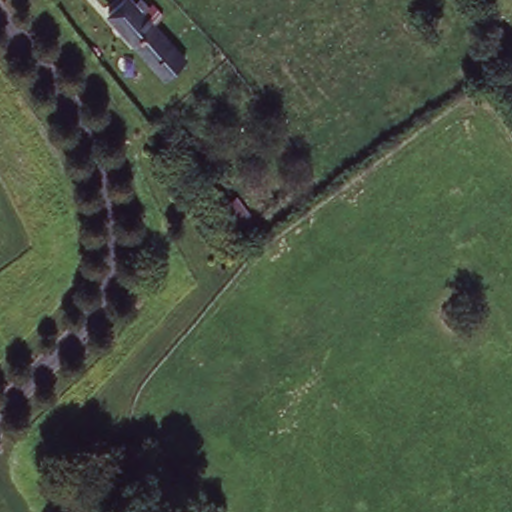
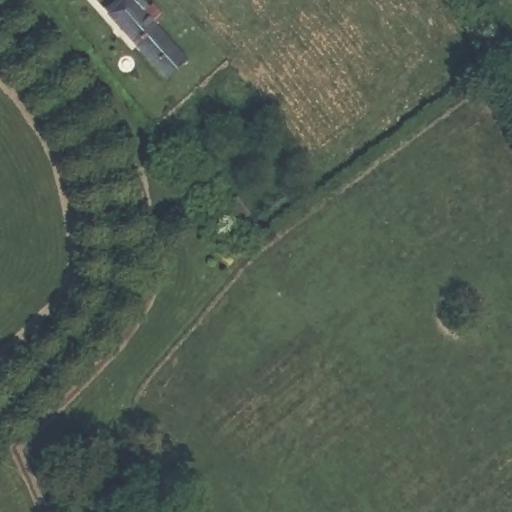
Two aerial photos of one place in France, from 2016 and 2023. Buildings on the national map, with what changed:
unchanged [(123,0),(128,0),(134,7),(141,1),(147,9),(152,5),(166,20),(156,29),(181,59),(162,76),(105,17),(123,0)]
unchanged [(262,222),(231,245),(209,214),(237,194),(262,222)]

